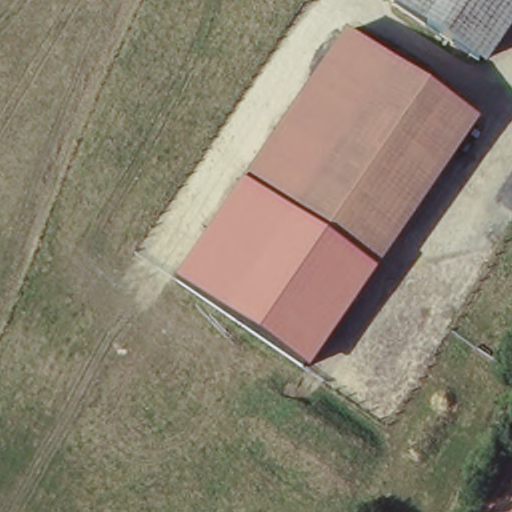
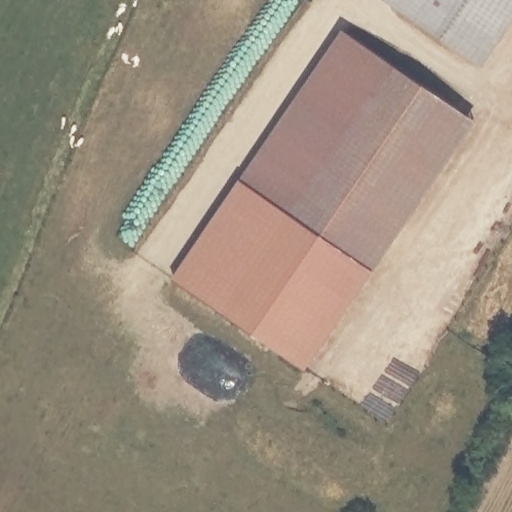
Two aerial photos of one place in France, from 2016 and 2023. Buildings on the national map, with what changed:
unchanged [(379,0),(512,0),(512,31),(487,68),(379,0)]
unchanged [(292,214),(242,178),(344,34),(395,69),(292,214)]
unchanged [(479,125),(377,275),(292,214),(395,69),(479,125)]
unchanged [(292,214),(377,275),(309,370),(176,276),(242,178),(292,214)]

